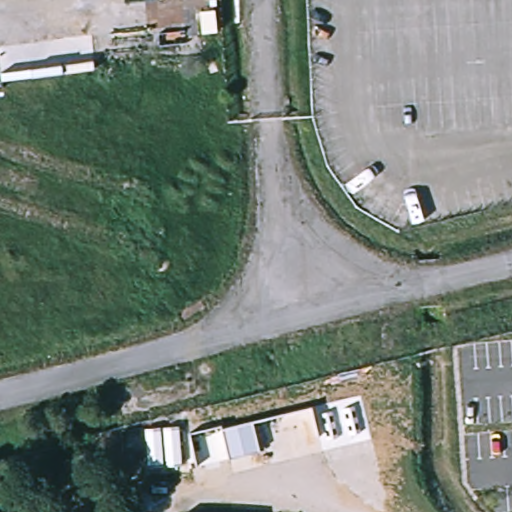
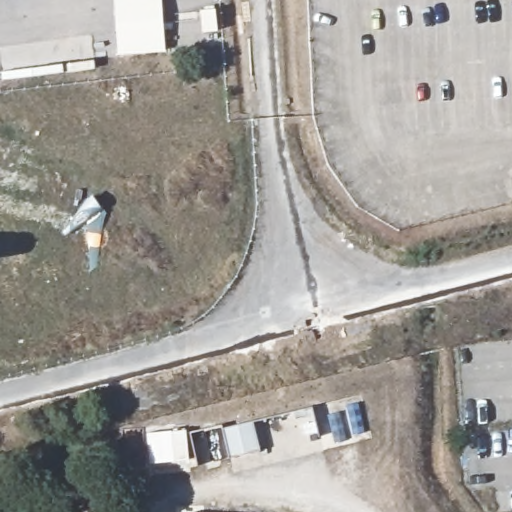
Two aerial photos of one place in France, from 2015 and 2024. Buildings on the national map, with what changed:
new [(167,51),(118,55),(114,0),(163,0),(167,51)]
new [(267,452),(230,459),(225,429),(261,422),(267,452)]

